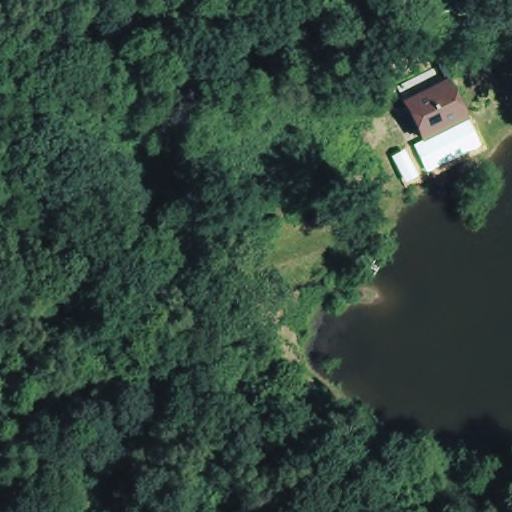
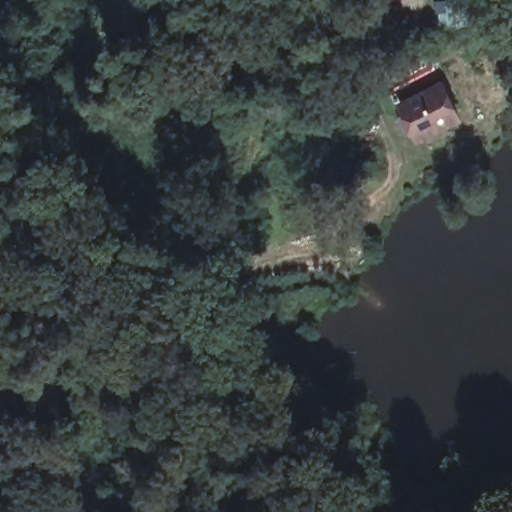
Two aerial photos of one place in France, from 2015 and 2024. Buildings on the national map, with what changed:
unchanged [(460,115),(425,141),(404,111),(439,85),(460,115)]

